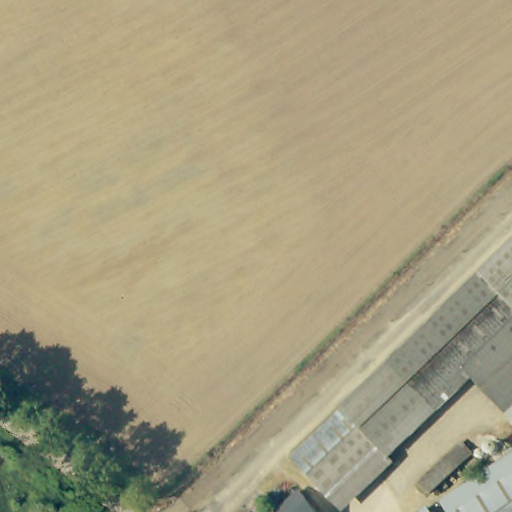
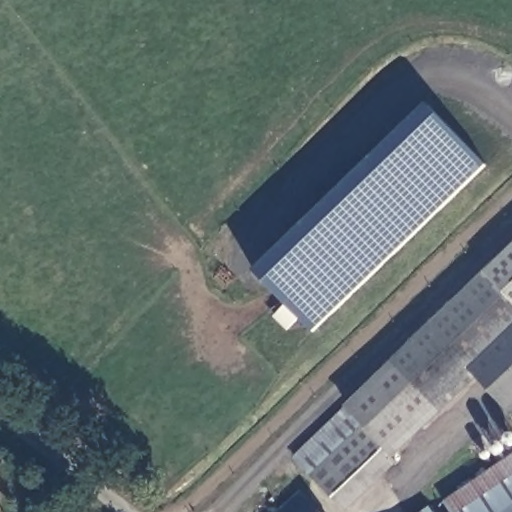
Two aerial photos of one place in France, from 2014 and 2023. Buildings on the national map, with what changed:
new [(255,272),(428,104),(488,166),(315,333),(255,272)]
unchanged [(488,273),(512,251),(512,299),(488,273)]
unchanged [(488,273),(512,299),(512,413),(477,379),(442,411),(437,406),(393,363),(488,273)]
unchanged [(418,425),(375,382),(393,363),(437,406),(418,425)]
unchanged [(375,382),(418,425),(390,454),(347,409),(375,382)]
unchanged [(390,454),(335,504),(295,459),(347,409),(390,454)]
unchanged [(451,512),(443,499),(512,454),(512,512),(451,512)]
unchanged [(319,512),(276,512),(299,490),(319,512)]

